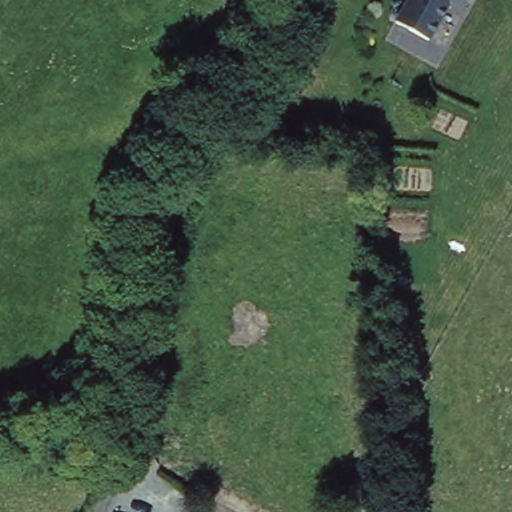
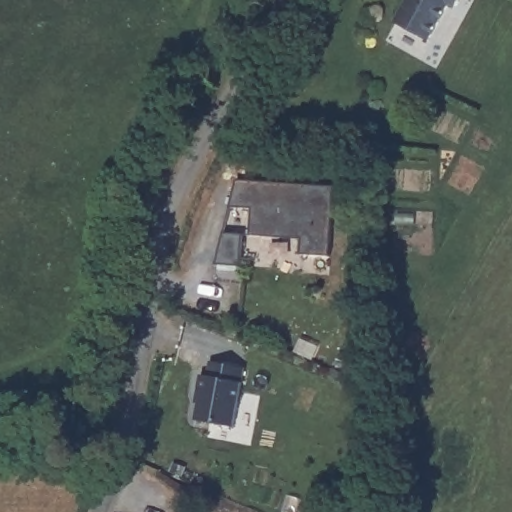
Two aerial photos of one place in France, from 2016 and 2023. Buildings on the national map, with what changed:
unchanged [(395,18),(406,0),(462,0),(458,7),(452,5),(432,39),(395,18)]
new [(339,189),(336,257),(303,257),(305,240),(254,234),(256,208),(235,208),(240,179),(339,189)]
new [(204,392),(199,392),(204,376),(209,376),(213,362),(245,368),(235,426),(198,418),(204,392)]
unchanged [(116,512),(113,512),(113,511),(116,512)]

